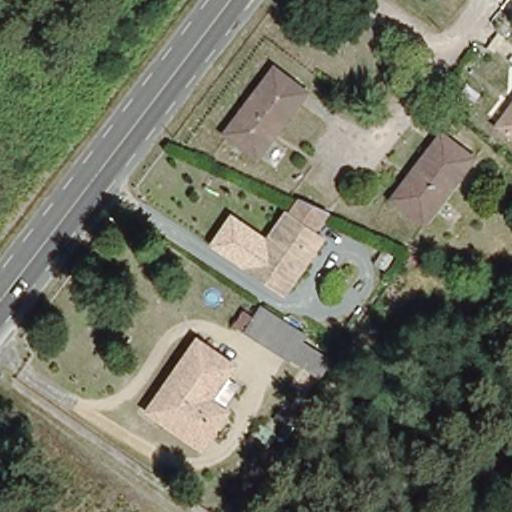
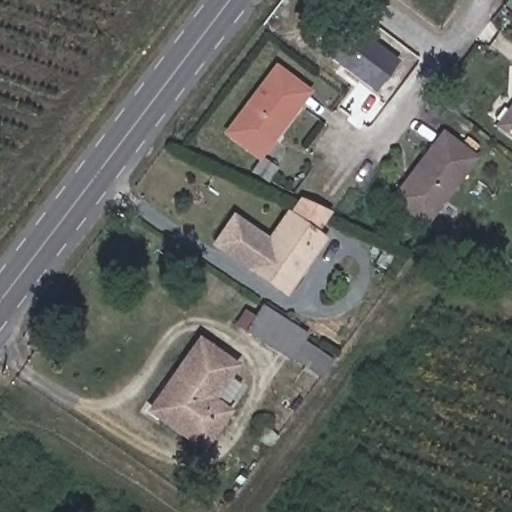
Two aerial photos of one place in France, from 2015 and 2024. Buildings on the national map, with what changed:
unchanged [(275,67),(308,92),(278,128),(274,124),(252,151),(224,129),(275,67)]
unchanged [(512,103),(512,132),(497,122),(512,103)]
unchanged [(415,169),(410,165),(439,129),(473,154),(423,220),(393,196),(415,169)]
unchanged [(309,230),(319,236),(282,288),(246,263),(298,192),(326,205),(309,230)]
unchanged [(302,364),(256,332),(268,319),(274,312),(318,342),(316,345),(302,364)]
unchanged [(195,333),(228,355),(203,389),(223,404),(197,435),(152,404),(176,372),(171,368),(195,333)]

